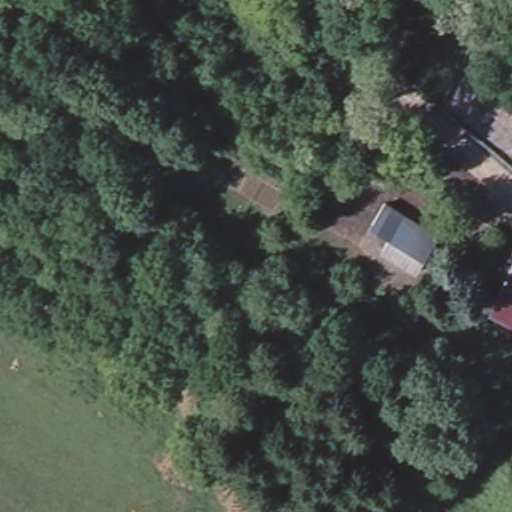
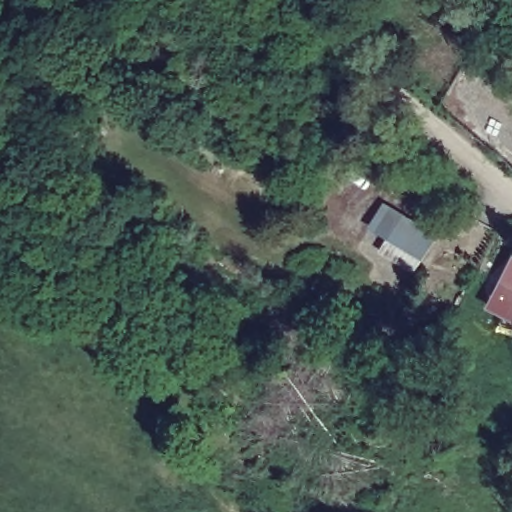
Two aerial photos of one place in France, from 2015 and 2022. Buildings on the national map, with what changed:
unchanged [(424,259),(417,270),(385,249),(392,236),(375,225),(389,203),(440,236),(430,253),(426,260),(424,259)]
unchanged [(510,253),(512,254),(512,315),(485,302),(510,253)]

